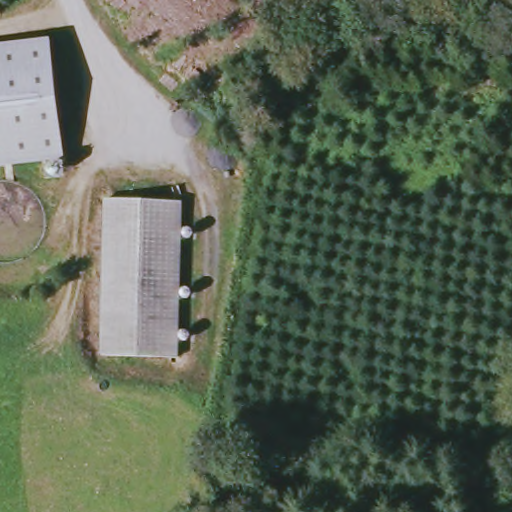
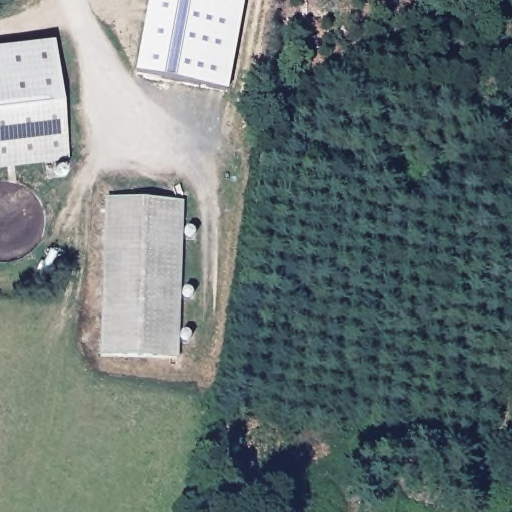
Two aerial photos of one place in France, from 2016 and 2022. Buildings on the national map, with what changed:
new [(135,73),(148,0),(243,0),(227,90),(135,73)]
unchanged [(52,37),(55,64),(63,130),(67,160),(0,168),(0,43),(52,37)]
unchanged [(183,206),(178,361),(102,359),(107,203),(183,206)]

